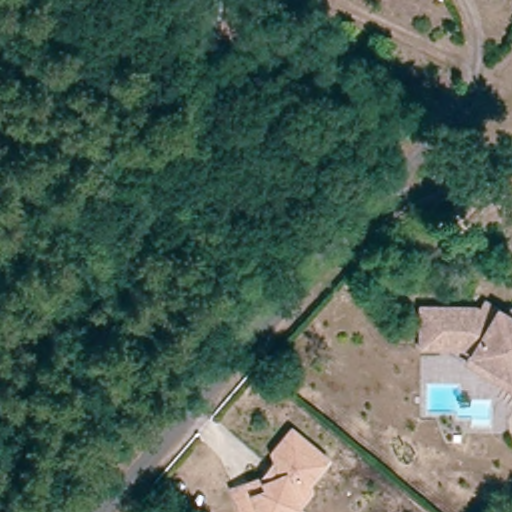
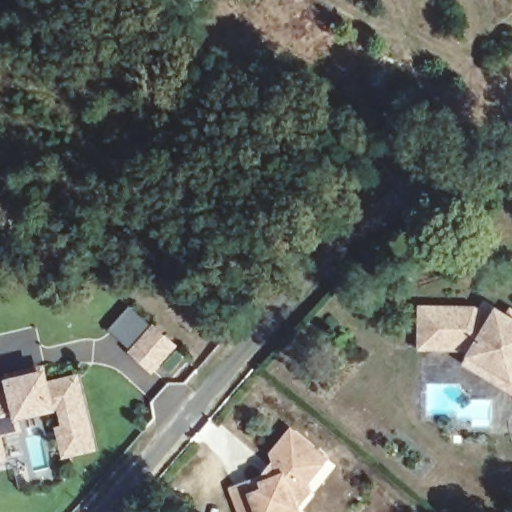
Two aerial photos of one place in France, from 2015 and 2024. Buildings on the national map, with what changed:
unchanged [(468,359),(469,357),(459,352),(417,351),(417,340),(418,312),(470,313),(476,316),(481,308),(494,315),(504,321),(508,315),(512,318),(512,385),(468,359)]
new [(178,346),(153,373),(126,352),(153,323),(178,346)]
unchanged [(512,385),(512,396),(463,367),(468,359),(512,385)]
new [(4,380),(48,370),(50,381),(79,373),(98,450),(63,459),(55,427),(61,426),(58,411),(20,420),(24,432),(3,437),(9,462),(0,464),(0,394),(8,393),(4,380)]
unchanged [(229,490),(255,480),(260,483),(271,479),(277,471),(270,452),(284,435),(291,434),(322,459),(303,482),(305,489),(292,505),(294,512),(238,512),(229,490)]

